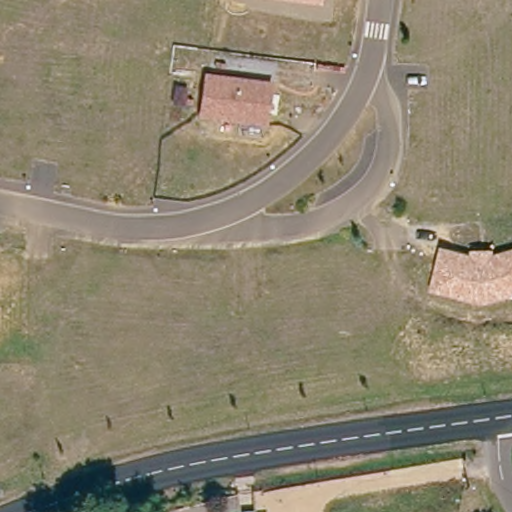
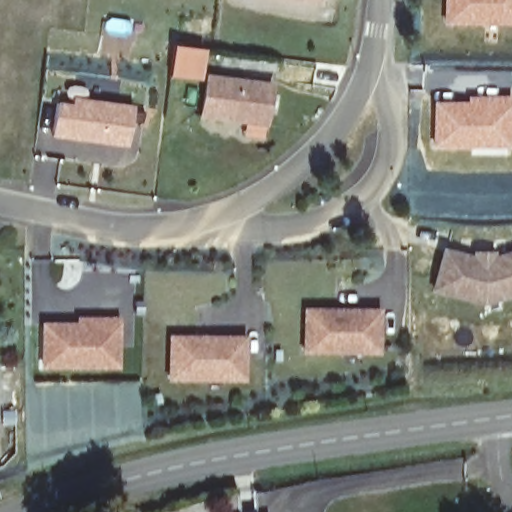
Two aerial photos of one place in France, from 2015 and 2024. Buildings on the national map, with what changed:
unchanged [(322,5),(286,0),(323,0),(322,5)]
new [(512,25),(442,25),(442,0),(512,0),(512,25)]
new [(205,49),(201,81),(168,77),(172,45),(205,49)]
unchanged [(273,81),(268,125),(201,117),(206,72),(273,81)]
new [(466,94),(512,94),(512,151),(433,151),(432,100),(466,100),(466,94)]
new [(70,102),(70,96),(131,104),(127,146),(51,137),(55,100),(70,102)]
unchanged [(430,292),(440,247),(471,256),(471,251),(494,249),(495,253),(512,248),(512,297),(481,306),(430,292)]
new [(380,352),(304,351),(302,307),(380,308),(380,352)]
new [(75,322),(75,316),(120,316),(120,370),(41,370),(40,322),(75,322)]
new [(247,336),(247,382),(167,382),(167,335),(247,336)]

